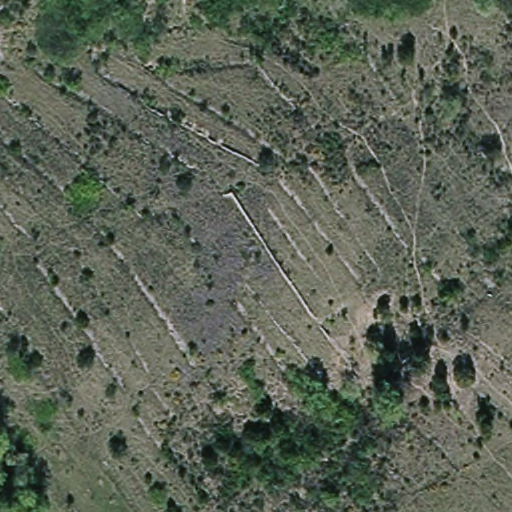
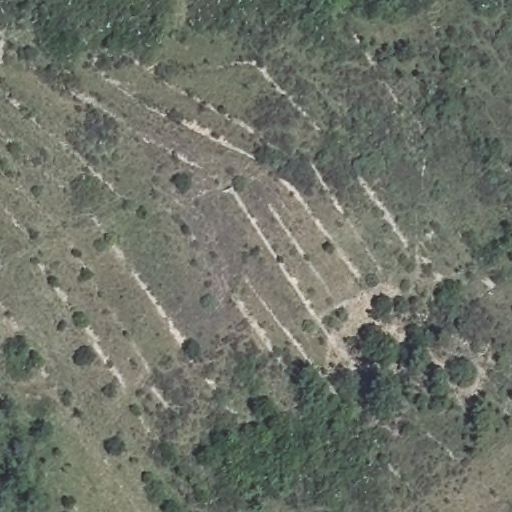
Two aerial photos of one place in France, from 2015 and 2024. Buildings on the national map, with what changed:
[]

